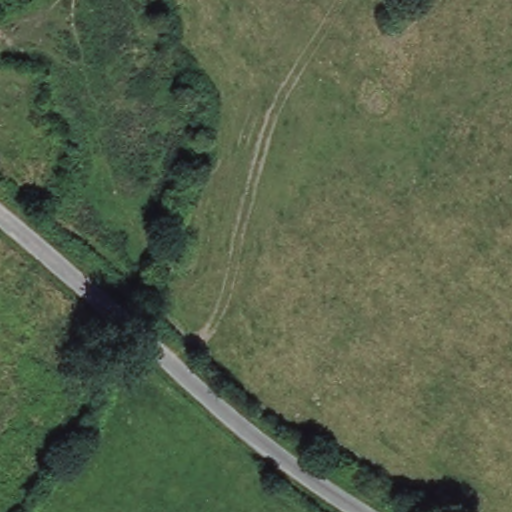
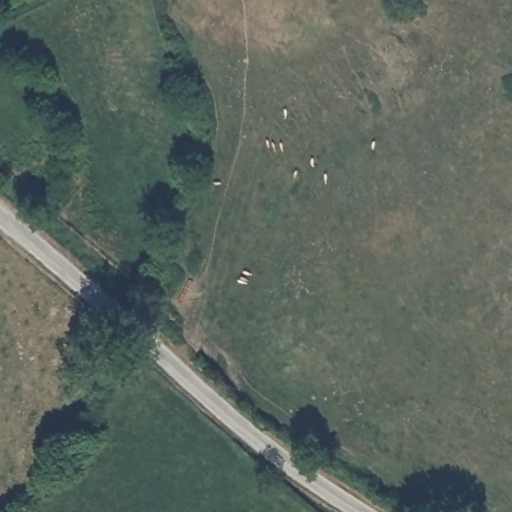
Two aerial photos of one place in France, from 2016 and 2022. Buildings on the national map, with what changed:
[]

